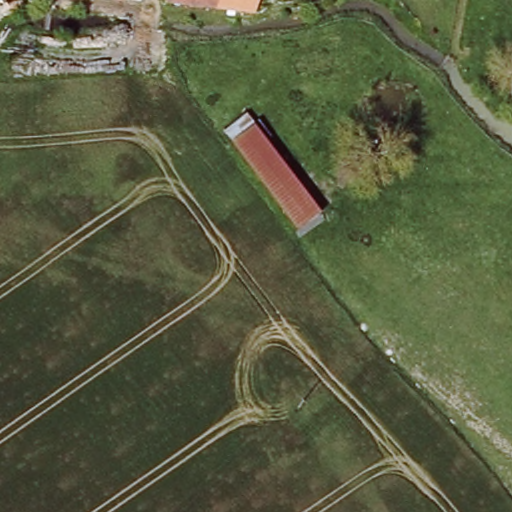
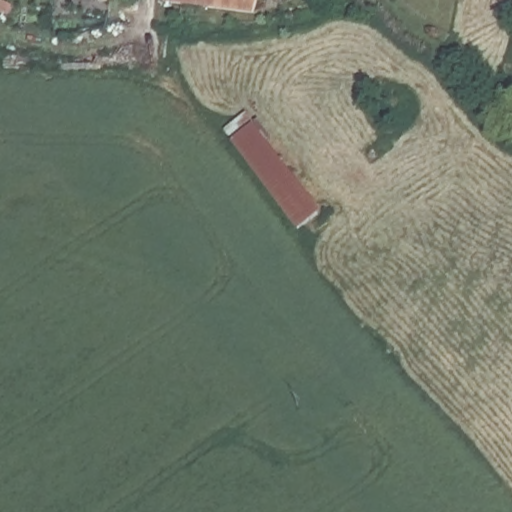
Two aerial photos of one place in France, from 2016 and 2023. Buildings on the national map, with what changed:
unchanged [(166,3),(166,0),(246,0),(242,12),(166,3)]
unchanged [(230,140),(249,126),(315,215),(296,229),(230,140)]

